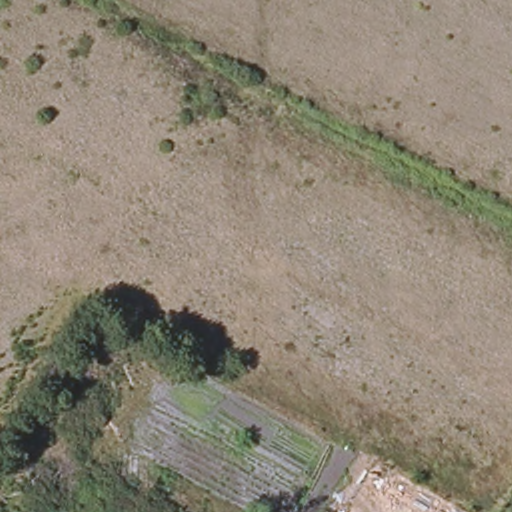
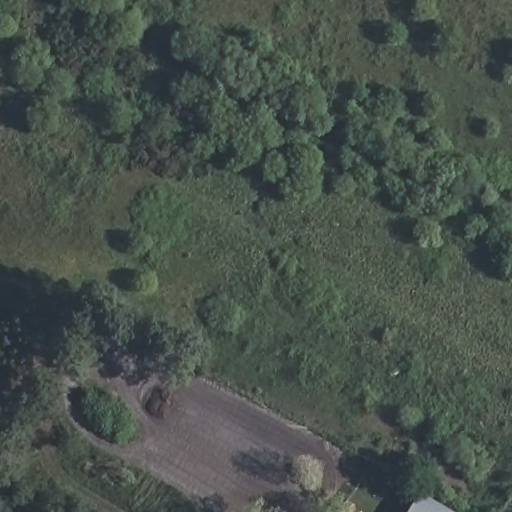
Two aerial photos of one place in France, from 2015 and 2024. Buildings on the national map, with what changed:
new [(459,512),(412,512),(424,492),(459,512)]

